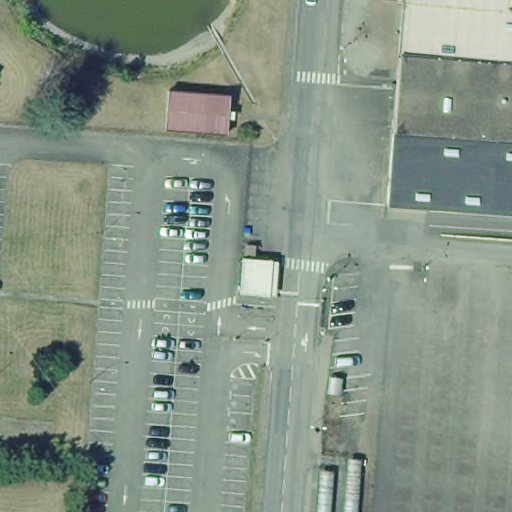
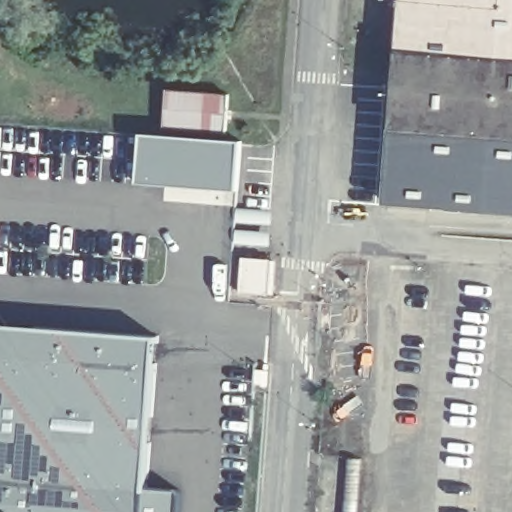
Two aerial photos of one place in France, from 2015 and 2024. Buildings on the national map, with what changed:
unchanged [(397,0),(512,0),(512,143),(387,133),(397,0)]
unchanged [(177,93),(217,95),(215,134),(175,132),(177,93)]
new [(247,187),(150,178),(148,132),(175,132),(215,134),(250,139),(247,187)]
unchanged [(512,218),(380,207),(387,133),(512,143),(512,218)]
unchanged [(236,259),(267,262),(264,299),(233,296),(236,259)]
new [(160,333),(147,488),(175,489),(173,512),(0,512),(0,321),(160,333)]
new [(360,461),(356,512),(341,512),(344,460),(360,461)]
new [(331,475),(328,512),(314,512),(316,473),(331,475)]

